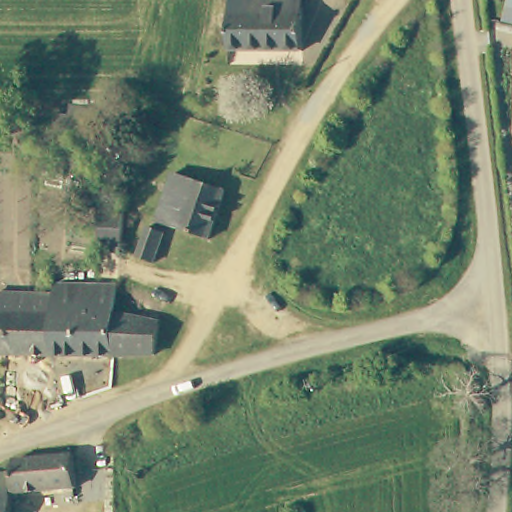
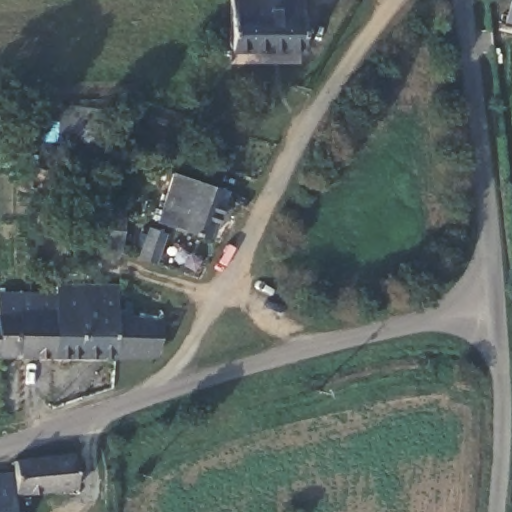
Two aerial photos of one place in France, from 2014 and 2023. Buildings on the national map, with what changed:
unchanged [(304,0),(303,51),(231,50),(232,0),(304,0)]
unchanged [(186,174),(235,192),(219,239),(169,222),(186,174)]
unchanged [(97,204),(120,204),(117,250),(94,247),(97,204)]
unchanged [(159,227),(175,234),(163,265),(147,260),(159,227)]
unchanged [(61,293),(61,284),(126,286),(123,316),(120,356),(57,356),(61,293)]
unchanged [(0,320),(1,293),(61,293),(57,356),(0,356),(0,320)]
unchanged [(123,316),(140,316),(139,321),(165,324),(159,356),(120,356),(123,316)]
unchanged [(78,454),(80,490),(18,492),(18,473),(18,459),(78,454)]
unchanged [(18,473),(18,492),(19,512),(0,512),(0,475),(18,473)]

